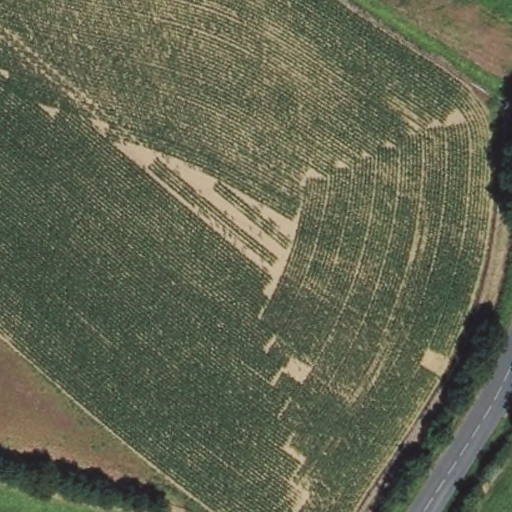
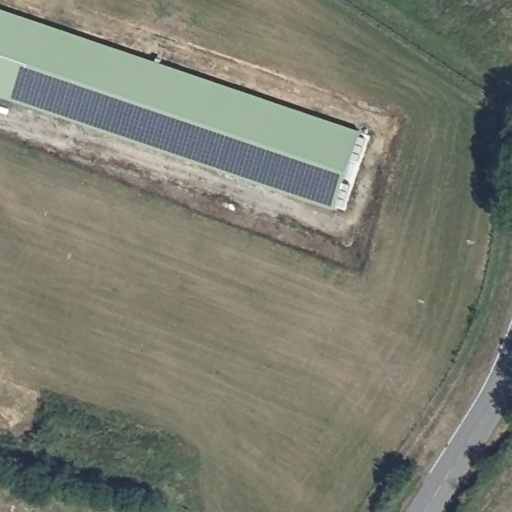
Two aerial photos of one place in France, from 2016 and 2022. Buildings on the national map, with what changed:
new [(334,211),(0,97),(0,9),(360,132),(334,211)]

